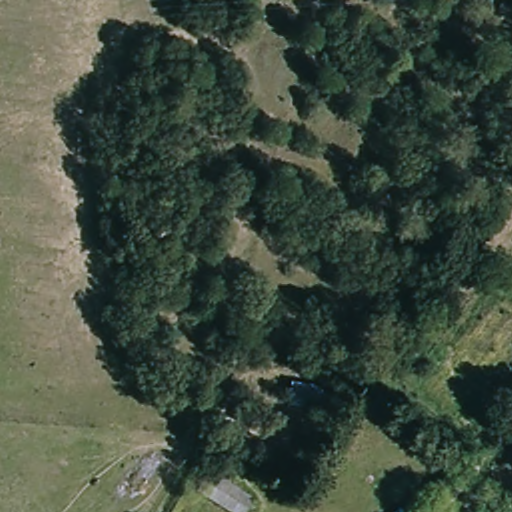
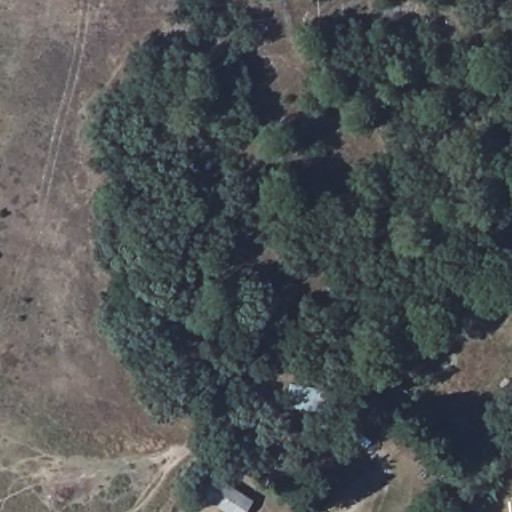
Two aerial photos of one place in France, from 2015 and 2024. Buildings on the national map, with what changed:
unchanged [(244,512),(220,512),(194,497),(207,473),(251,500),(244,512)]

